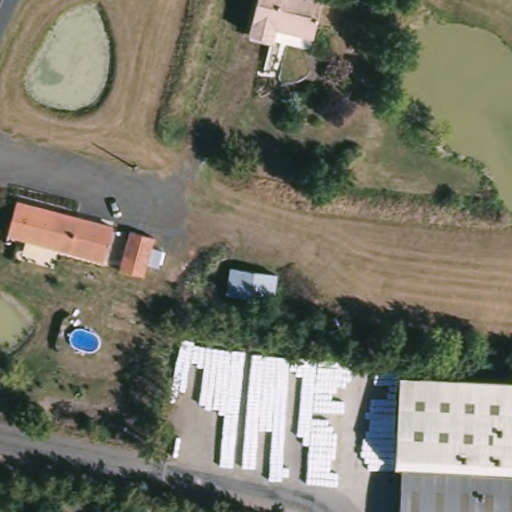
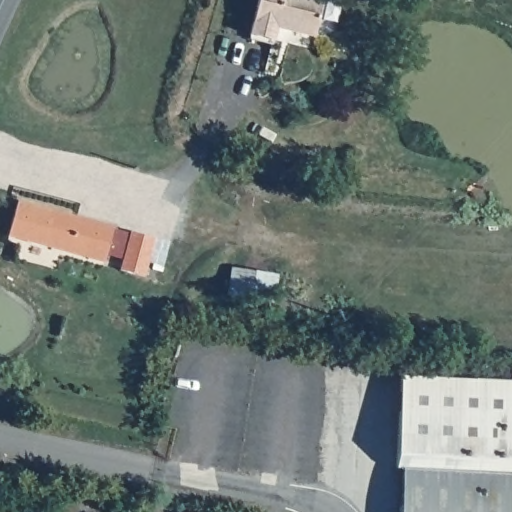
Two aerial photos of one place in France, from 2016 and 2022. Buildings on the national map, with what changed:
unchanged [(322,0),(306,50),(247,35),(256,0),(322,0)]
unchanged [(112,227),(103,262),(8,235),(16,201),(112,227)]
unchanged [(152,239),(143,277),(119,272),(128,233),(152,239)]
unchanged [(280,276),(276,302),(231,295),(234,269),(280,276)]
unchanged [(406,461),(398,459),(398,441),(405,374),(512,380),(512,512),(403,512),(406,461)]

